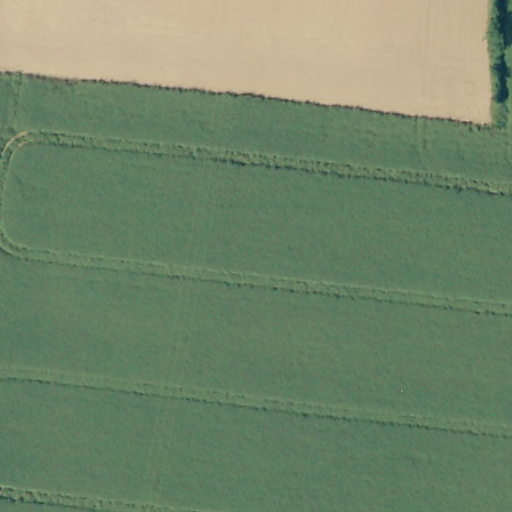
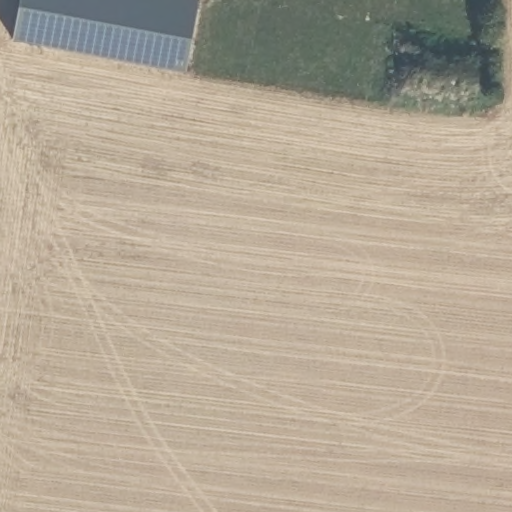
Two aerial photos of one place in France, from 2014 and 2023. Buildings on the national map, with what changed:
new [(185,76),(11,42),(19,0),(197,0),(185,76)]

